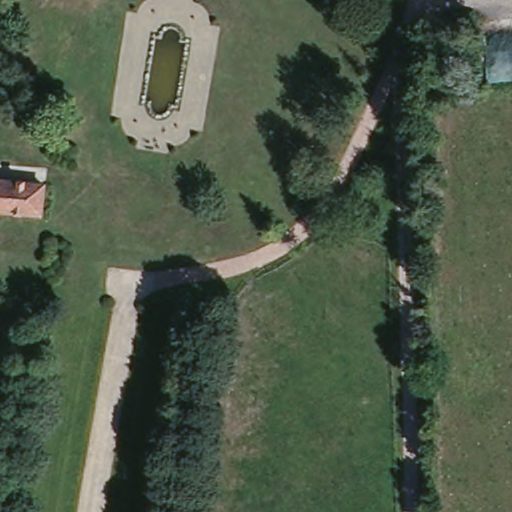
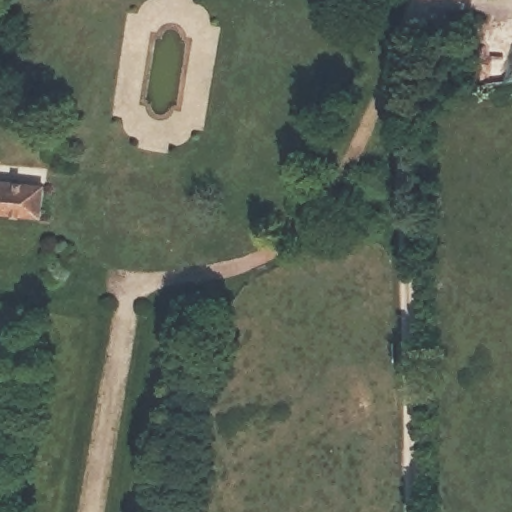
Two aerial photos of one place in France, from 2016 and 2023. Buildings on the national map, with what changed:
unchanged [(47,184),(46,217),(0,212),(0,180),(47,184)]

